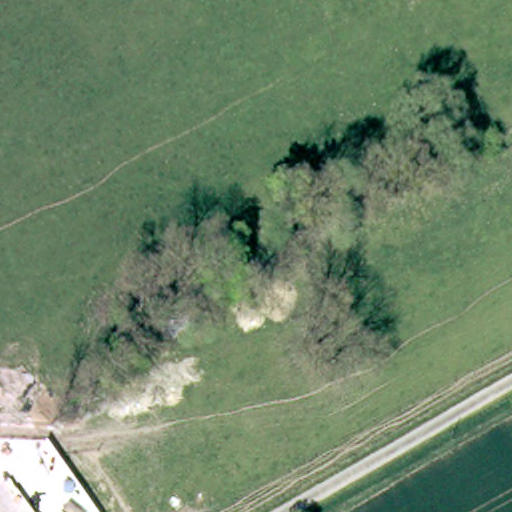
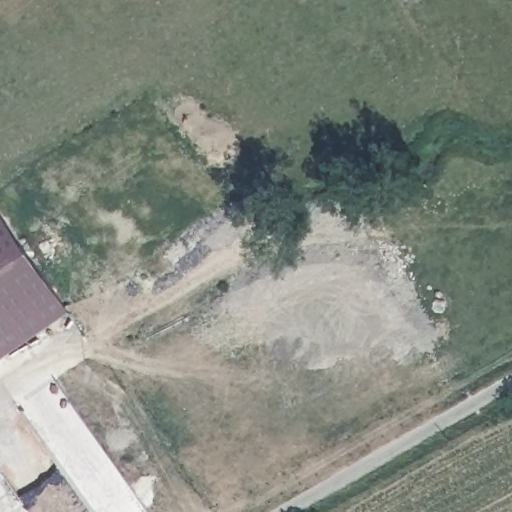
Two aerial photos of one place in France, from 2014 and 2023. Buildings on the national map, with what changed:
new [(0,361),(0,208),(73,311),(0,361)]

